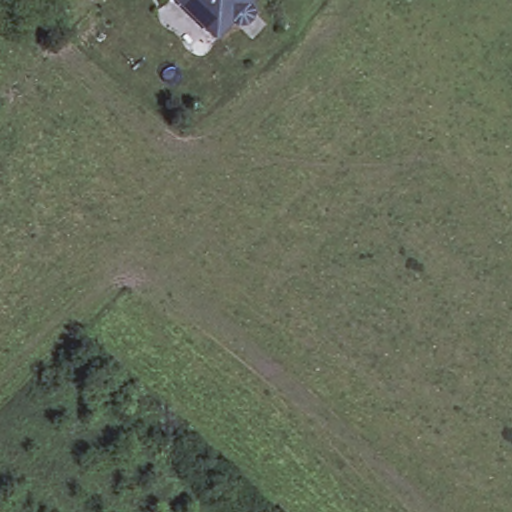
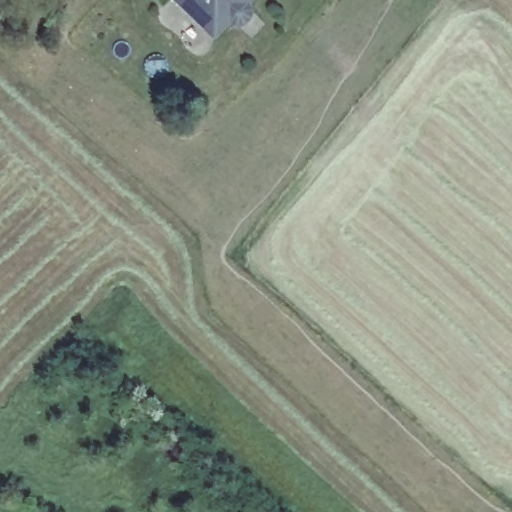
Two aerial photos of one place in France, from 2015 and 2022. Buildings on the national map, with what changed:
unchanged [(248,10),(250,12),(252,16),(252,22),(248,29),(245,30),(238,32),(235,30),(230,28),(216,44),(172,2),(174,0),(257,0),(248,10)]

